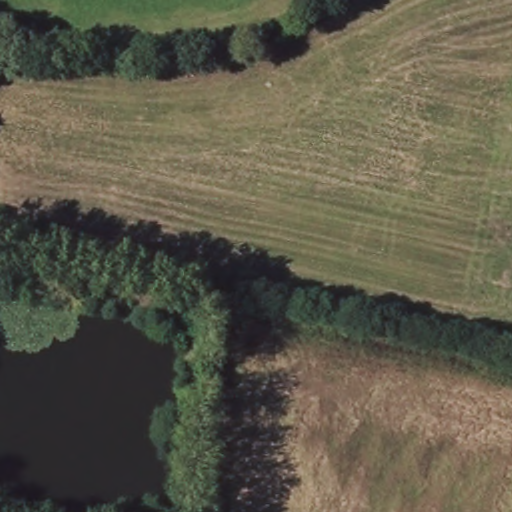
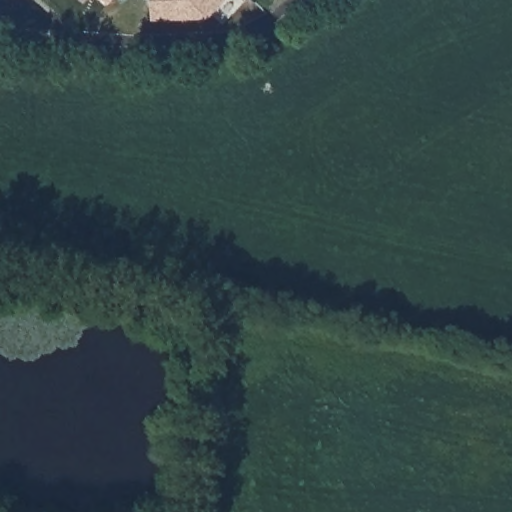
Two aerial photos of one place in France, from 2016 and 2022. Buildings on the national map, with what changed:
new [(108,0),(110,0),(109,1),(108,0)]
new [(195,18),(153,17),(152,0),(225,0),(213,14),(195,18)]

